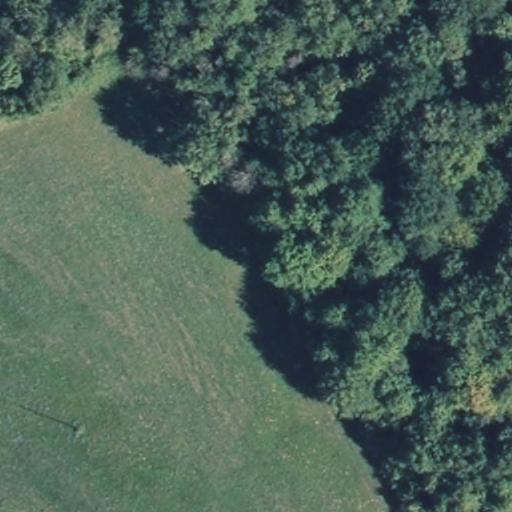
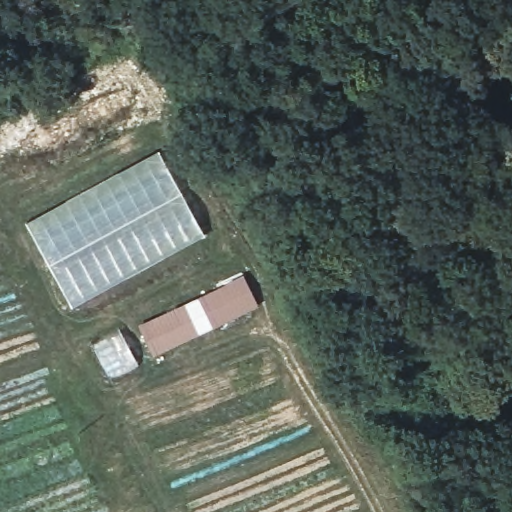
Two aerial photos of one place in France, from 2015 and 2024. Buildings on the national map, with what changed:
new [(159,149),(206,235),(152,262),(72,307),(25,222),(159,149)]
new [(206,292),(242,273),(259,306),(154,355),(138,323),(206,292)]

